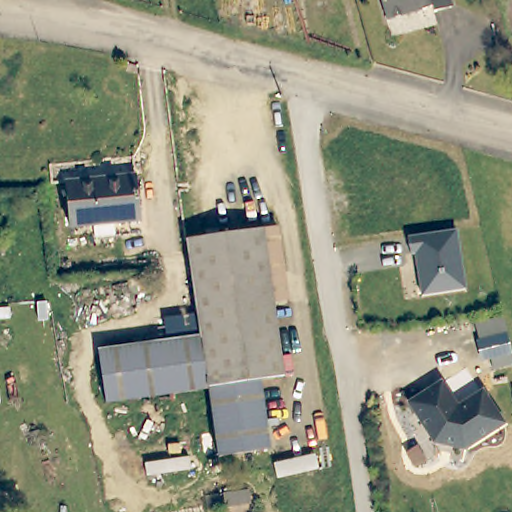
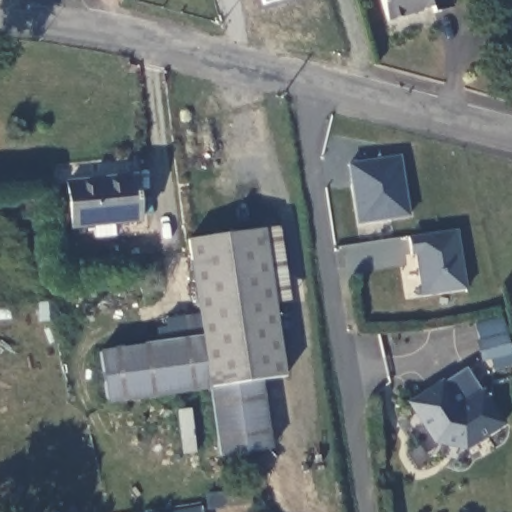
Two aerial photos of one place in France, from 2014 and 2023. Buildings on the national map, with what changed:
unchanged [(431,20),(429,13),(387,25),(380,0),(448,0),(452,14),(431,20)]
new [(409,217),(358,225),(349,163),(399,155),(409,217)]
unchanged [(63,189),(131,178),(137,222),(85,231),(69,233),(63,189)]
unchanged [(414,284),(408,241),(403,241),(401,224),(448,218),(457,278),(414,284)]
unchanged [(261,385),(272,461),(222,468),(211,394),(204,343),(189,243),(264,233),(285,381),(261,385)]
unchanged [(505,338),(478,346),(473,330),(501,322),(505,338)]
unchanged [(211,394),(112,408),(105,356),(204,343),(211,394)]
unchanged [(502,428),(463,455),(434,449),(409,411),(440,389),(457,413),(481,396),(502,428)]

